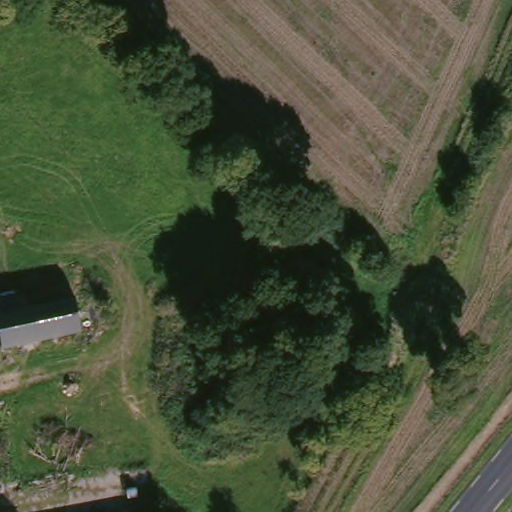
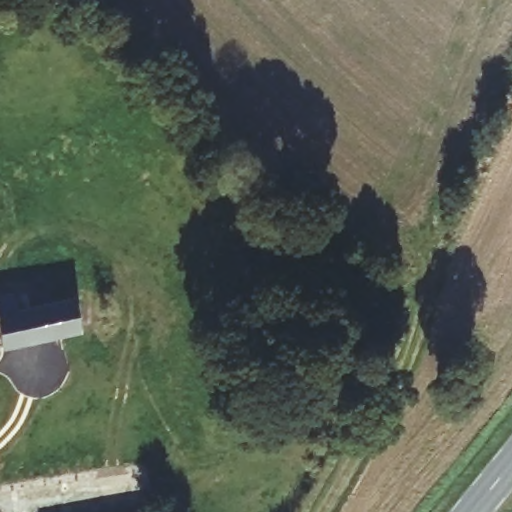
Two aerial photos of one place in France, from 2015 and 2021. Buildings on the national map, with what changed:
unchanged [(84,333),(4,348),(2,320),(80,304),(84,333)]

